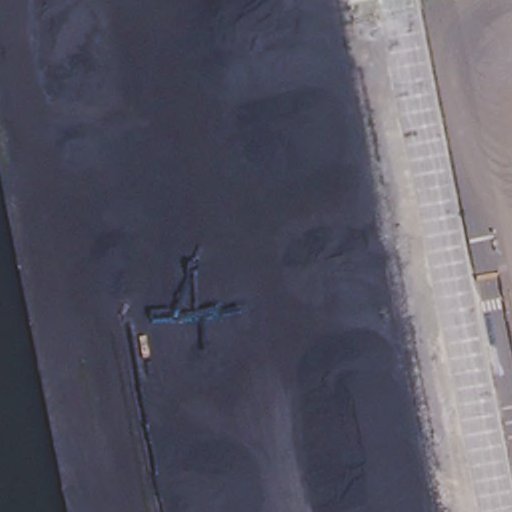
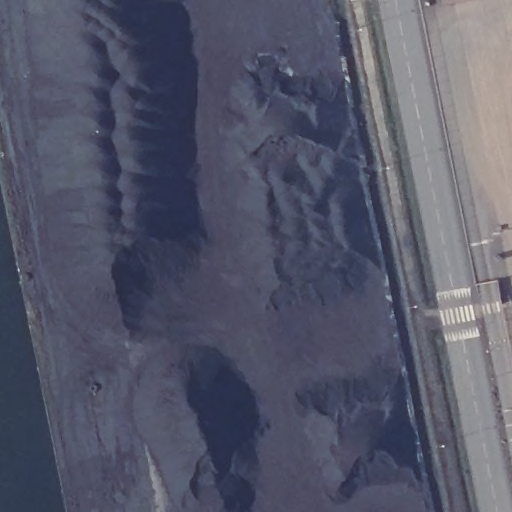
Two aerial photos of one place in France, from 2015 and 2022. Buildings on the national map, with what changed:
[]

